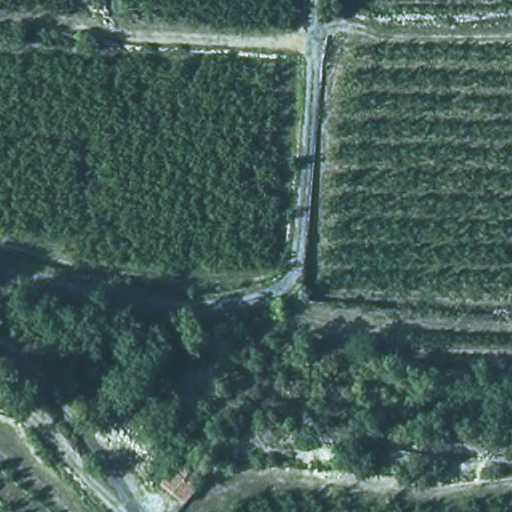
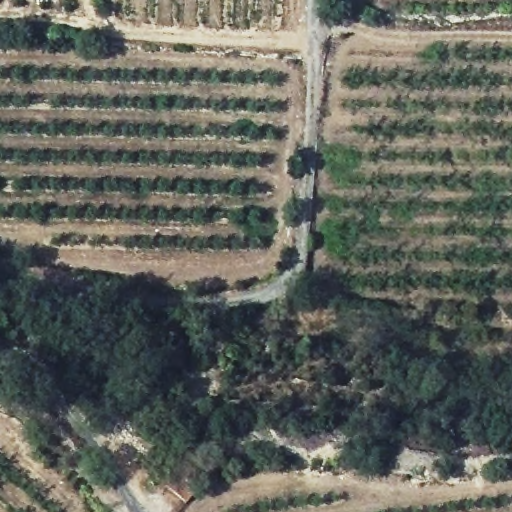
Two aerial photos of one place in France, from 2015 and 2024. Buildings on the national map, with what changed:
unchanged [(157,485),(174,458),(202,477),(183,500),(157,485)]

